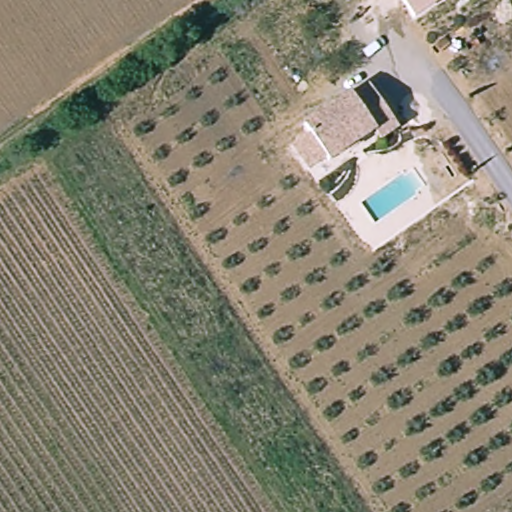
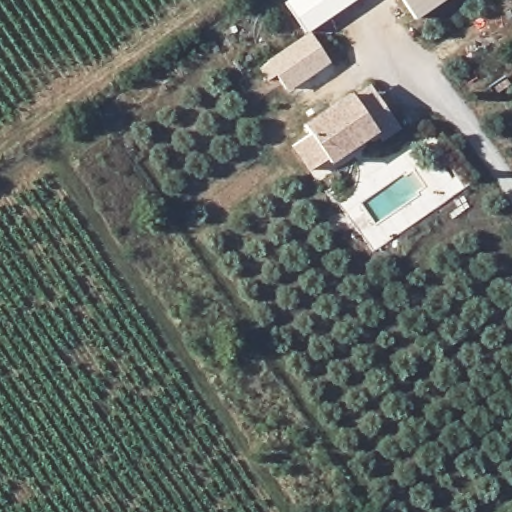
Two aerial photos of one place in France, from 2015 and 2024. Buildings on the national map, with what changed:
new [(285,2),(288,0),(352,0),(306,32),(285,2)]
unchanged [(411,15),(400,0),(434,0),(411,15)]
new [(311,31),(331,63),(288,92),(267,60),(311,31)]
unchanged [(382,139),(378,130),(330,161),(327,157),(308,170),(292,145),(310,132),(304,123),(351,91),(354,96),(372,83),(400,126),(382,139)]

